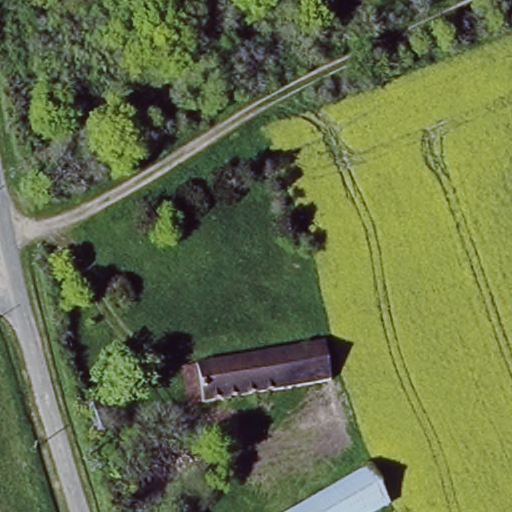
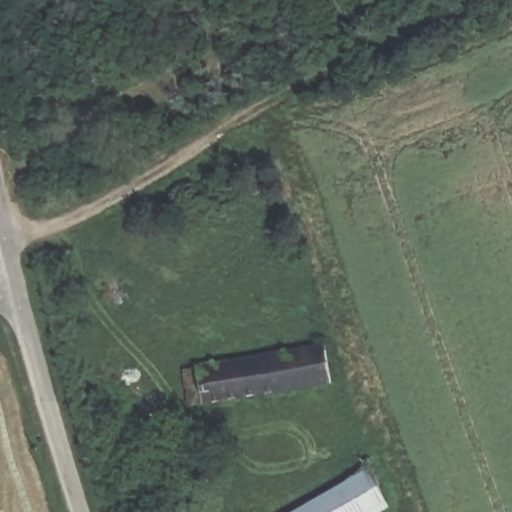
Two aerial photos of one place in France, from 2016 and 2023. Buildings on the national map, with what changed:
unchanged [(335,423),(316,427),(308,387),(182,413),(173,372),(322,347),(335,423)]
unchanged [(377,485),(390,477),(403,501),(384,512),(297,512),(370,472),(377,485)]
unchanged [(195,510),(196,512),(192,512),(195,510)]

